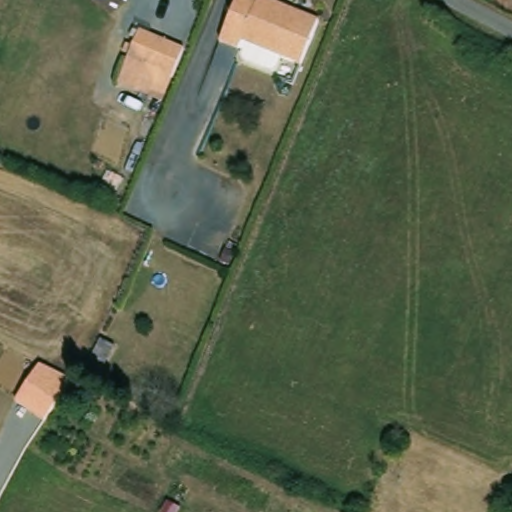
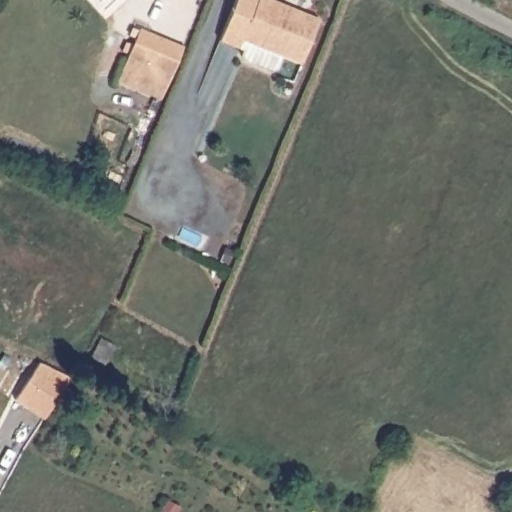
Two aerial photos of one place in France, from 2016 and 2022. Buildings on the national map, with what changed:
unchanged [(247,39),(244,47),(224,39),(240,0),(280,0),(324,18),(305,62),(247,39)]
unchanged [(189,37),(177,65),(133,47),(145,18),(189,37)]
unchanged [(124,70),(133,47),(177,65),(169,84),(168,89),(124,70)]
unchanged [(39,365),(69,378),(43,421),(15,402),(39,365)]

